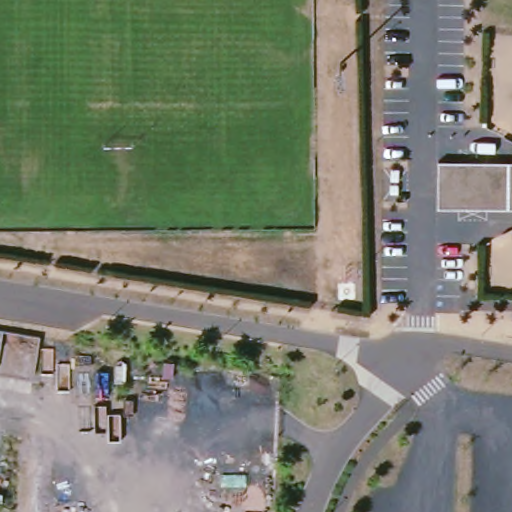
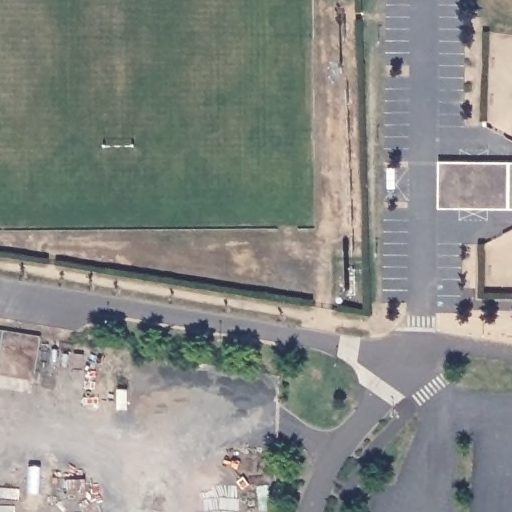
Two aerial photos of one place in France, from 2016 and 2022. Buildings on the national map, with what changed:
unchanged [(442,208),(442,161),(452,161),(512,161),(512,208),(452,208),(442,208)]

